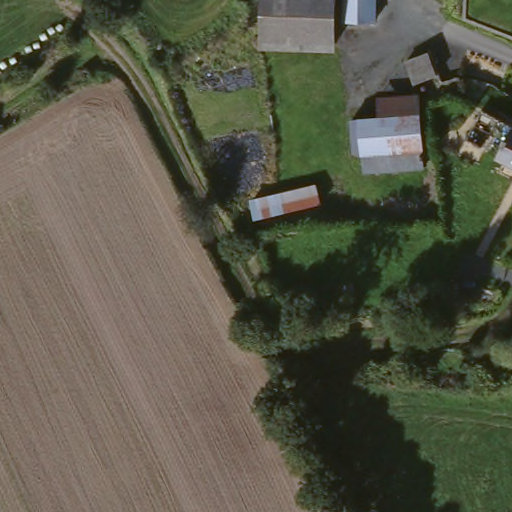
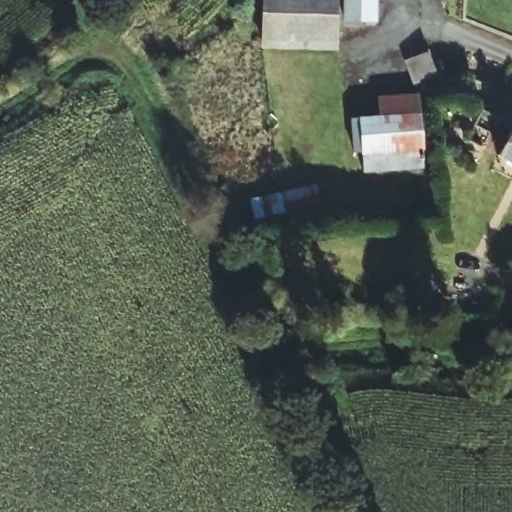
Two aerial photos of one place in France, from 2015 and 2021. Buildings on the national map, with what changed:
unchanged [(331,47),(258,47),(260,0),(332,0),(331,47)]
unchanged [(371,10),(371,20),(339,17),(341,0),(372,0),(371,10)]
unchanged [(427,165),(359,171),(356,117),(379,113),(379,98),(421,91),(427,165)]
unchanged [(512,131),(512,165),(495,157),(509,129),(512,131)]
unchanged [(323,205),(251,220),(247,196),(316,181),(323,205)]

